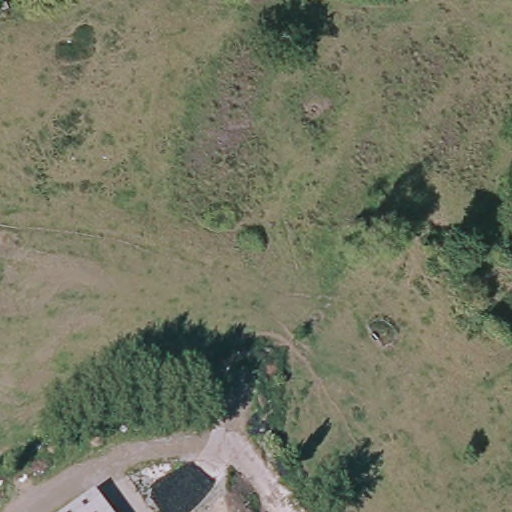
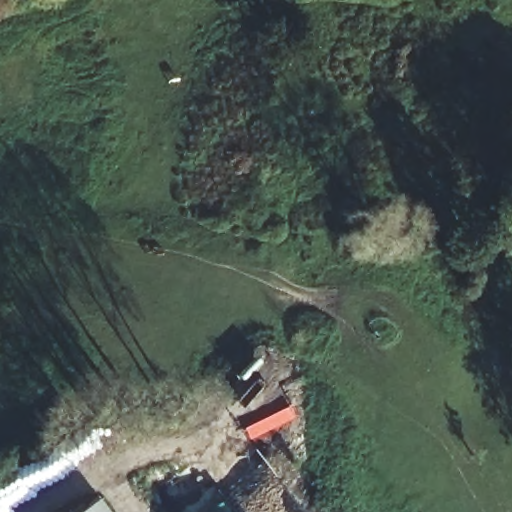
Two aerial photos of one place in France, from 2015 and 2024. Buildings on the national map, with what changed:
unchanged [(100,498),(110,512),(81,512),(100,498)]

